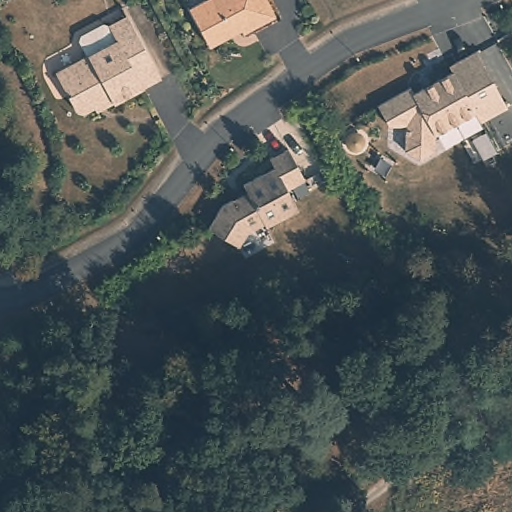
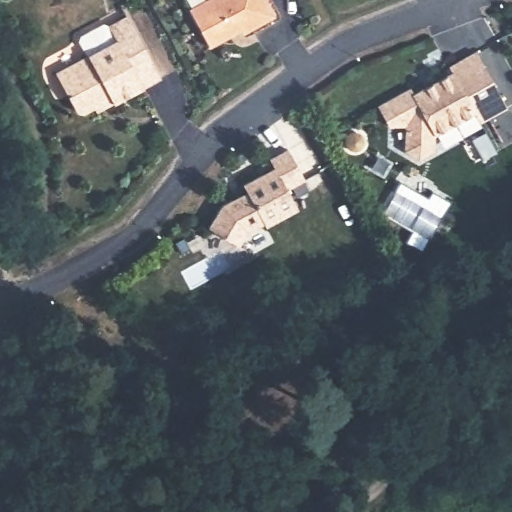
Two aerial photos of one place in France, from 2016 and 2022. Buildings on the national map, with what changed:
unchanged [(195,2),(199,0),(276,0),(281,11),(250,28),(246,21),(237,25),(238,30),(217,41),(195,2)]
unchanged [(162,82),(115,107),(112,103),(79,119),(56,75),(87,59),(77,42),(100,29),(109,29),(128,18),(162,82)]
unchanged [(485,120),(478,109),(437,132),(438,148),(423,156),(409,146),(409,121),(391,121),(381,101),(415,83),(418,89),(457,68),(453,62),(482,47),(501,85),(512,105),(485,120)]
unchanged [(207,231),(221,208),(230,204),(237,204),(249,199),(242,188),(273,171),(269,162),(287,152),(305,184),(287,193),(298,214),(266,232),(262,227),(245,238),(237,249),(207,231)]
new [(400,181),(428,197),(432,190),(452,201),(422,252),(405,242),(412,231),(381,214),(400,181)]

